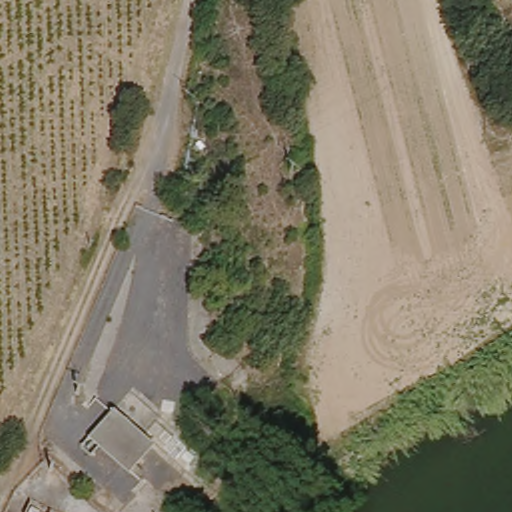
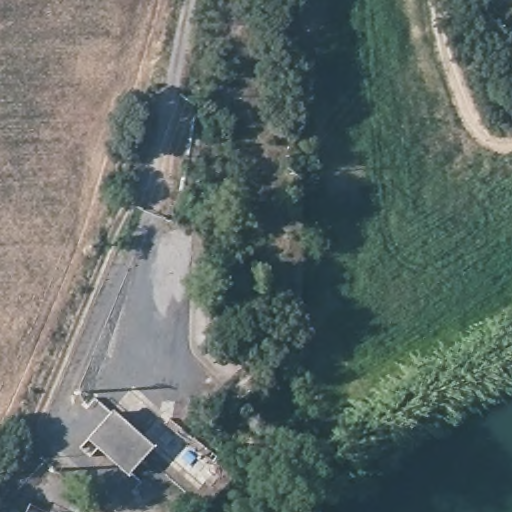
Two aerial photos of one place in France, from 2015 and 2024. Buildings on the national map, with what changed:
unchanged [(155,444),(127,479),(84,440),(114,408),(155,444)]

